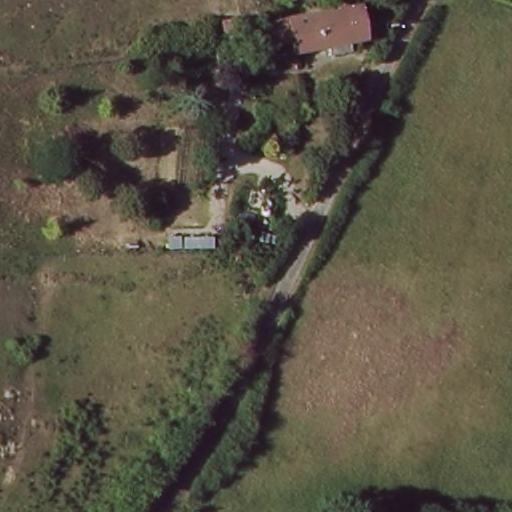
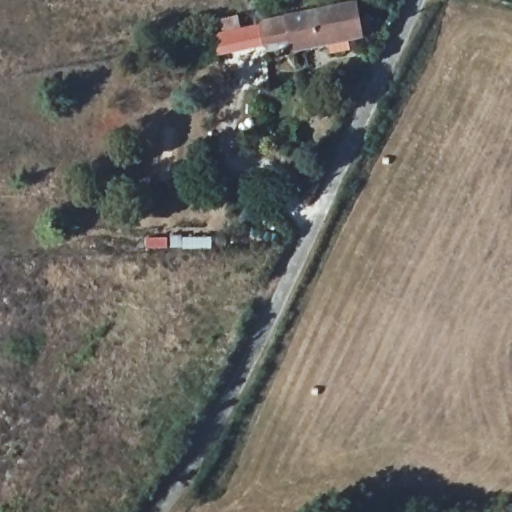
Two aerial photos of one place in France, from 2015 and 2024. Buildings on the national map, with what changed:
unchanged [(264,20),(342,0),(361,0),(366,23),(351,27),(355,40),(332,46),(328,32),(298,40),(298,39),(296,27),(266,34),(264,22),(264,20)]
unchanged [(264,22),(266,34),(296,27),(298,39),(289,41),(289,39),(216,57),(212,37),(264,22)]

